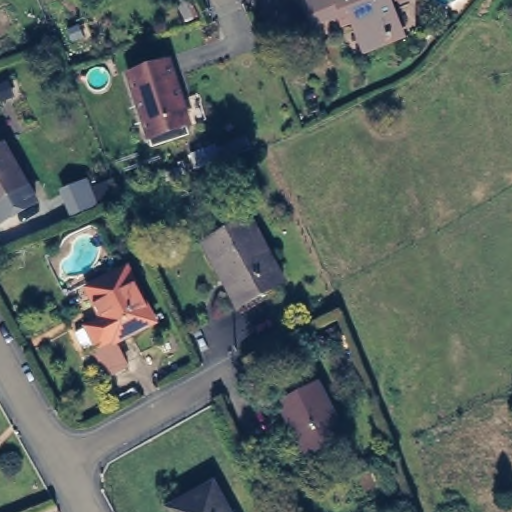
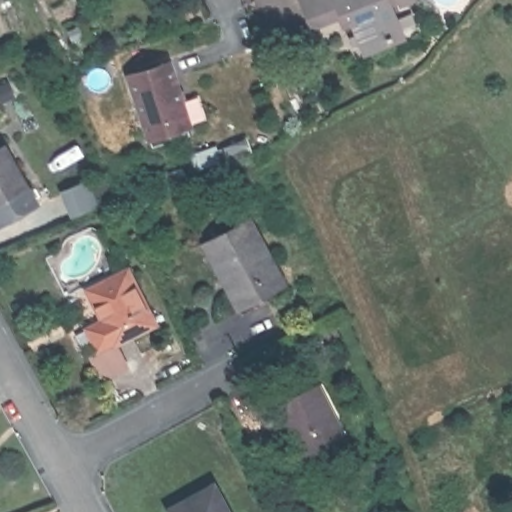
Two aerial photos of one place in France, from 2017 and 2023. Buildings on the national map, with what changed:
unchanged [(313,0),(418,0),(395,9),(407,40),(368,55),(353,21),(346,24),(343,19),(317,30),(306,2),(313,0)]
unchanged [(175,65),(194,127),(152,141),(133,77),(175,65)]
unchanged [(7,142),(30,184),(0,202),(0,146),(7,142)]
unchanged [(223,280),(204,243),(252,219),(284,286),(246,304),(237,309),(223,280)]
unchanged [(136,267),(162,324),(123,344),(122,340),(86,357),(75,333),(112,317),(97,286),(136,267)]
unchanged [(319,387),(345,438),(309,459),(282,407),(319,387)]
unchanged [(221,512),(172,512),(169,506),(210,487),(221,512)]

